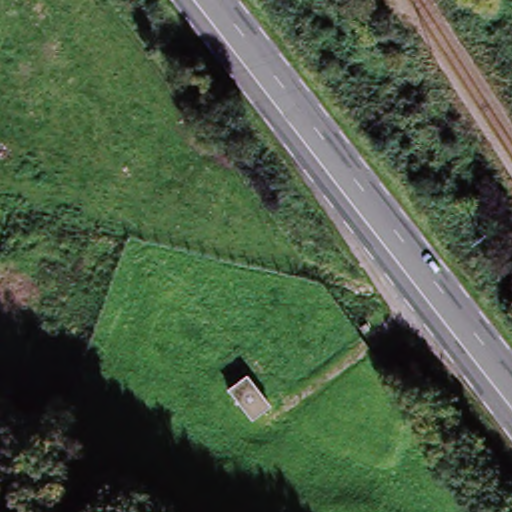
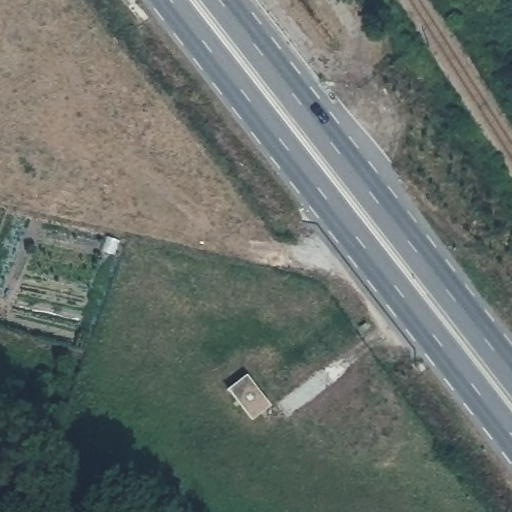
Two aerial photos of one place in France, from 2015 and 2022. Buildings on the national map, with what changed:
unchanged [(270,406),(252,420),(227,390),(247,375),(270,406)]

